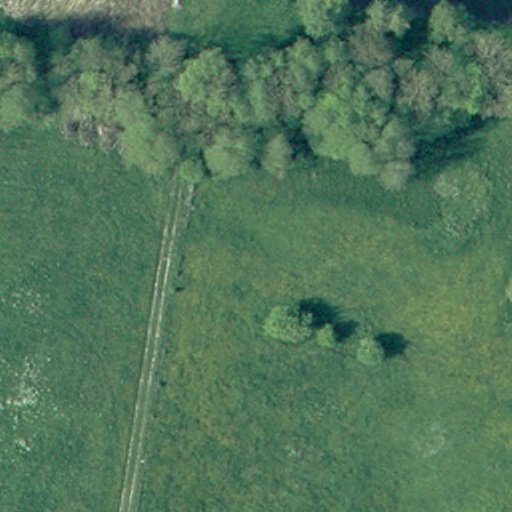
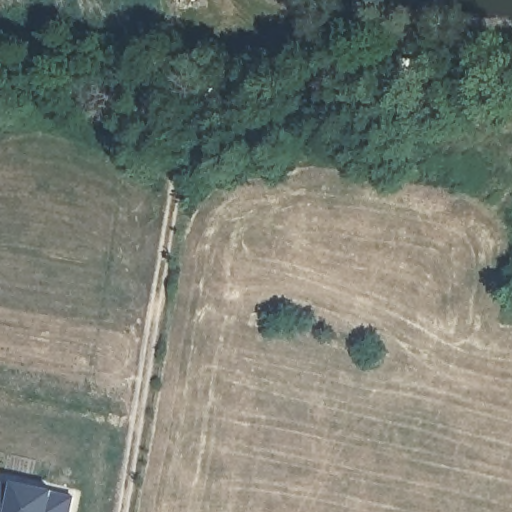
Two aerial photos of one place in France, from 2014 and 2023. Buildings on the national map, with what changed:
demolished [(179,0),(198,0),(200,11),(181,15),(179,0)]
new [(57,489),(77,495),(73,512),(0,512),(0,478),(13,480),(57,489)]

